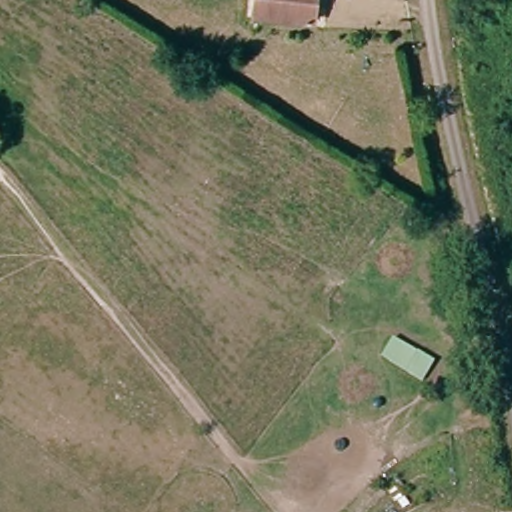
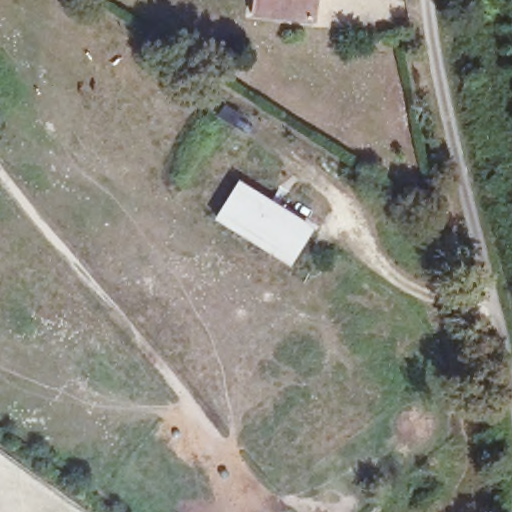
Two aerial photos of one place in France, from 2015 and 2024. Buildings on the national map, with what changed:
unchanged [(249,19),(249,0),(319,0),(318,22),(249,19)]
new [(215,219),(239,180),(315,227),(291,265),(215,219)]

